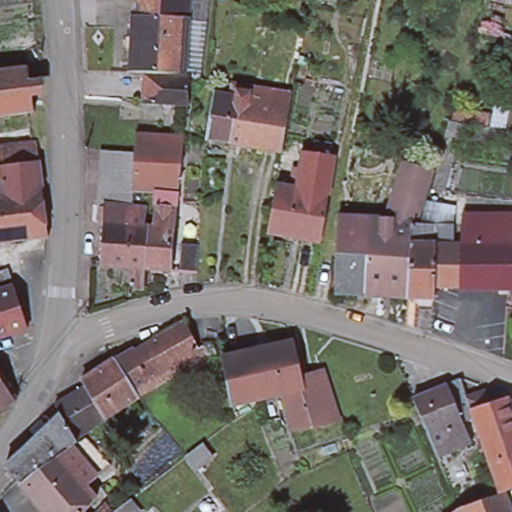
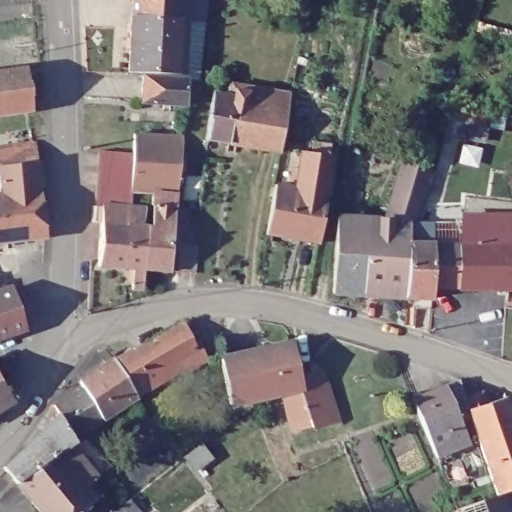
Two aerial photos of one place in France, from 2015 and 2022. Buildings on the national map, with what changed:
unchanged [(194,84),(182,83),(182,81),(182,79),(177,79),(177,76),(122,74),(126,0),(203,0),(194,84)]
unchanged [(31,111),(28,112),(0,116),(0,69),(25,65),(31,111)]
unchanged [(135,107),(136,80),(182,81),(182,83),(180,110),(135,107)]
unchanged [(210,95),(211,82),(225,84),(285,93),(274,151),(199,138),(206,94),(210,95)]
unchanged [(502,128),(500,142),(465,136),(465,140),(445,136),(450,121),(502,128)]
unchanged [(131,293),(132,272),(96,269),(100,209),(130,210),(142,211),(141,230),(145,230),(149,230),(150,197),(130,196),(132,157),(133,138),(160,139),(182,139),(178,167),(169,276),(143,274),(141,294),(131,293)]
unchanged [(30,146),(38,219),(41,241),(36,242),(0,247),(0,150),(27,147),(30,146)]
unchanged [(132,157),(130,196),(130,206),(130,210),(100,209),(96,209),(99,154),(132,157)]
unchanged [(292,192),(299,155),(331,160),(331,163),(317,247),(265,239),(273,189),(292,192)]
unchanged [(380,224),(400,155),(431,165),(422,198),(413,228),(406,228),(403,302),(330,298),(333,221),(380,224)]
unchanged [(422,198),(455,199),(449,229),(413,228),(422,198)]
unchanged [(459,249),(460,220),(510,221),(511,250),(512,250),(512,292),(455,292),(456,249),(459,249)]
unchanged [(413,228),(449,229),(449,248),(456,249),(455,292),(430,292),(430,302),(403,302),(406,228),(413,228)]
unchanged [(196,250),(193,277),(175,276),(178,249),(196,250)]
unchanged [(7,291),(20,332),(0,340),(0,273),(1,272),(7,291)]
unchanged [(131,353),(133,357),(181,326),(195,353),(199,350),(206,364),(181,379),(177,373),(135,400),(112,364),(131,353)]
unchanged [(226,403),(217,359),(285,344),(294,381),(318,374),(332,417),(308,425),(306,421),(288,426),(278,391),(226,403)]
unchanged [(77,386),(112,364),(135,400),(101,422),(81,392),(77,386)]
unchanged [(15,405),(5,410),(0,413),(0,380),(11,399),(15,405)]
unchanged [(407,399),(454,381),(465,409),(468,421),(458,425),(467,443),(432,457),(414,414),(407,399)]
unchanged [(51,409),(81,392),(101,422),(102,424),(73,445),(57,419),(51,409)]
unchanged [(465,409),(501,396),(512,427),(512,487),(500,492),(495,494),(468,421),(465,409)]
unchanged [(73,445),(75,448),(66,454),(65,452),(64,451),(14,487),(3,474),(1,472),(57,419),(73,445)]
unchanged [(66,454),(75,448),(76,446),(78,448),(84,443),(107,470),(83,491),(93,503),(83,512),(34,512),(16,490),(66,454)]
unchanged [(201,445),(210,457),(199,467),(188,455),(201,445)]
unchanged [(475,501),(470,484),(482,479),(488,496),(495,494),(500,492),(507,512),(450,512),(455,509),(475,501)]
unchanged [(134,512),(117,512),(126,505),(134,512)]
unchanged [(108,512),(98,512),(102,507),(108,512)]

